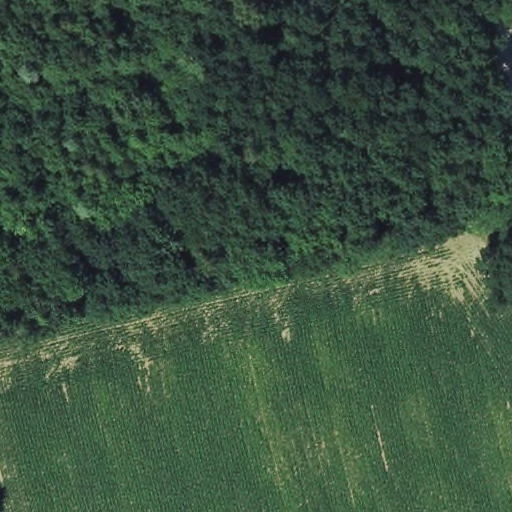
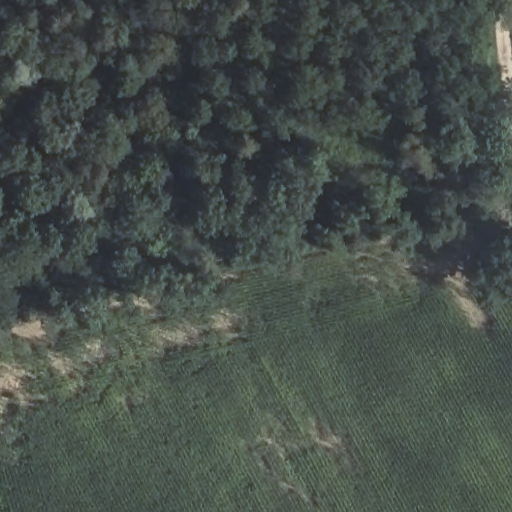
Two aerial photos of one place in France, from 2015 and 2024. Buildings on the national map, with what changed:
[]

